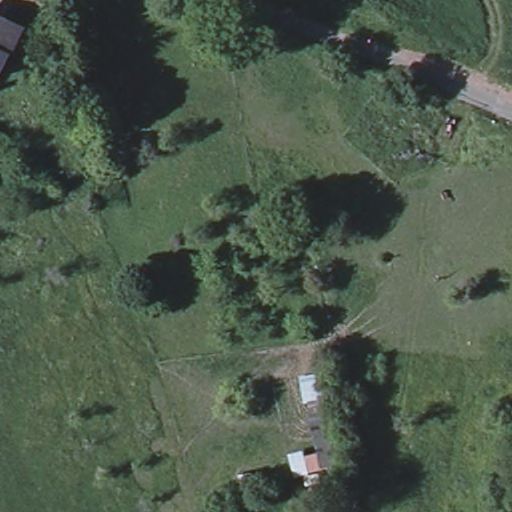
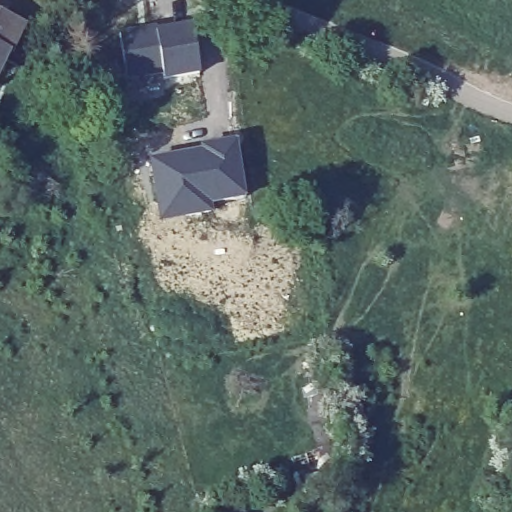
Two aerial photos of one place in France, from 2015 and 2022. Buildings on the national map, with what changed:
new [(138,30),(139,34),(190,26),(198,75),(160,81),(160,74),(124,80),(117,34),(138,30)]
new [(155,27),(155,32),(139,34),(138,30),(155,27)]
unchanged [(0,59),(0,60),(0,29),(12,35),(0,59)]
new [(243,197),(207,204),(208,212),(159,220),(150,160),(187,154),(188,162),(202,161),(200,149),(235,144),(243,197)]

